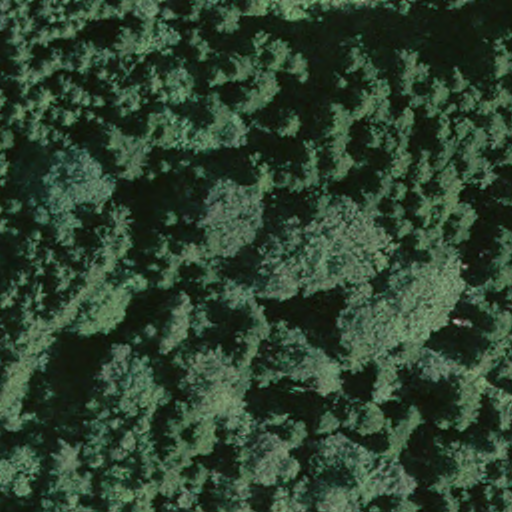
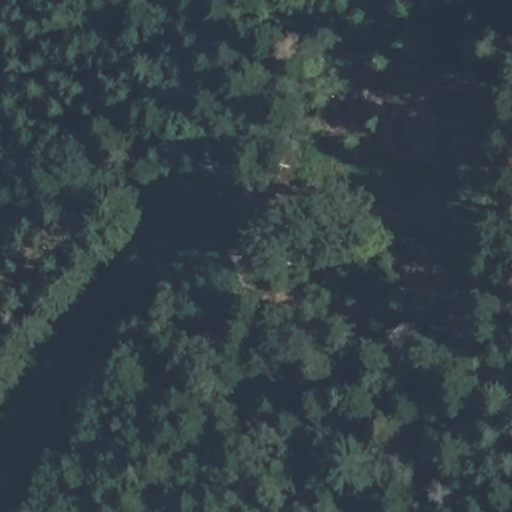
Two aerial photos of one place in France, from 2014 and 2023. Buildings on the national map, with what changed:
[]

